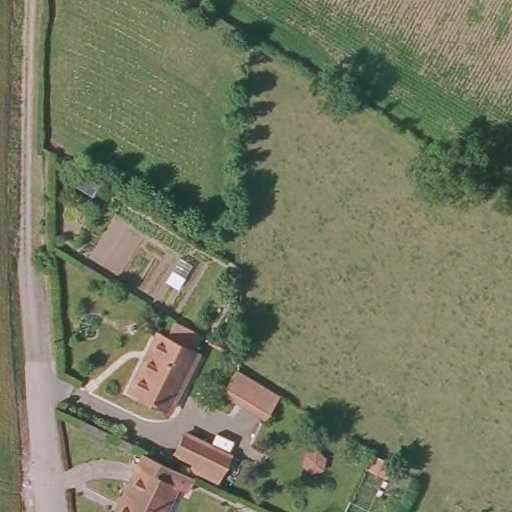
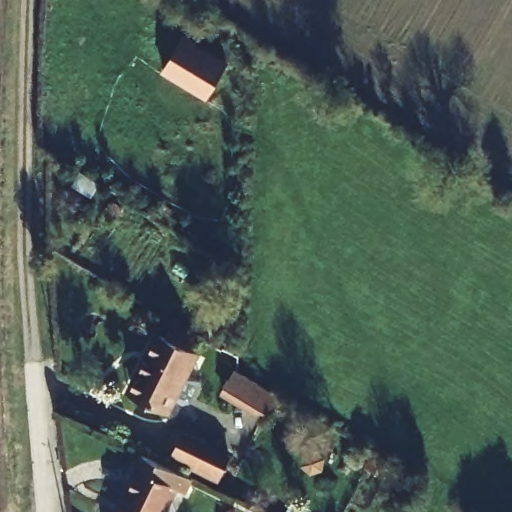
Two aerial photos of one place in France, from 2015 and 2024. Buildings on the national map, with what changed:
new [(206,88),(185,86),(162,71),(184,34),(230,62),(218,81),(213,77),(206,88)]
new [(162,279),(168,269),(175,258),(186,265),(180,275),(174,286),(162,279)]
unchanged [(160,330),(201,349),(168,415),(127,394),(160,330)]
unchanged [(272,395),(257,418),(233,403),(220,394),(231,373),(232,370),(235,371),(272,395)]
unchanged [(217,450),(207,469),(165,445),(174,427),(217,450)]
unchanged [(181,471),(160,512),(111,512),(141,452),(181,471)]

